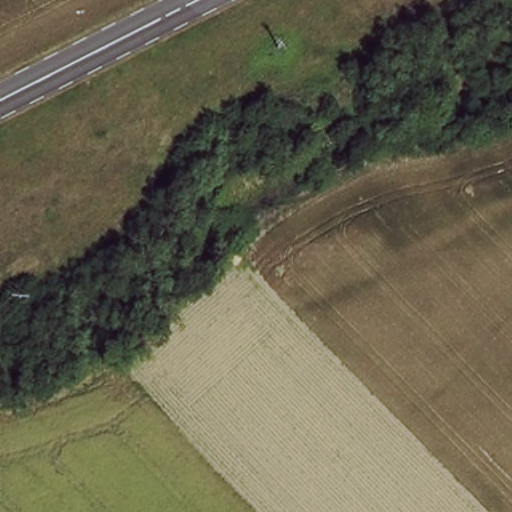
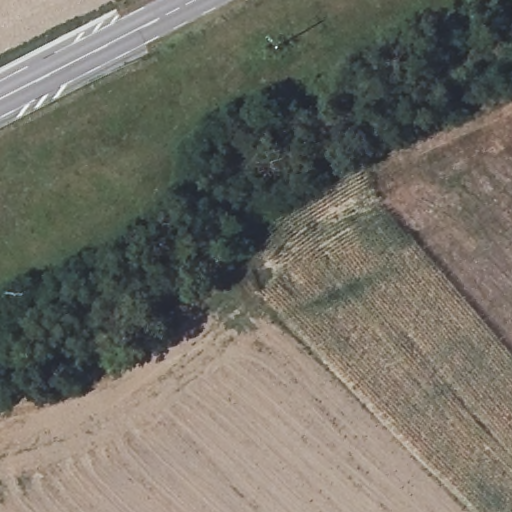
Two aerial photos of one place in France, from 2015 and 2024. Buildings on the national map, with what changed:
[]

